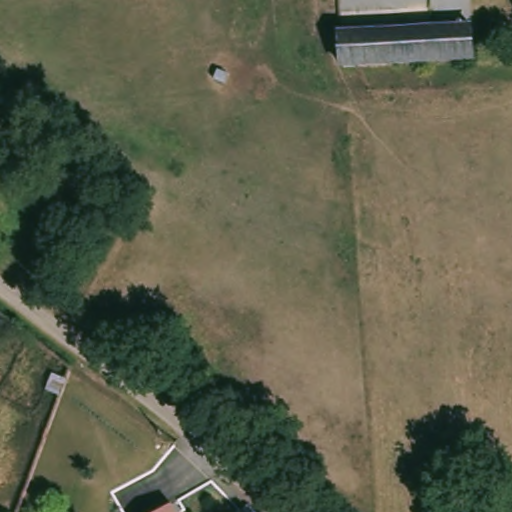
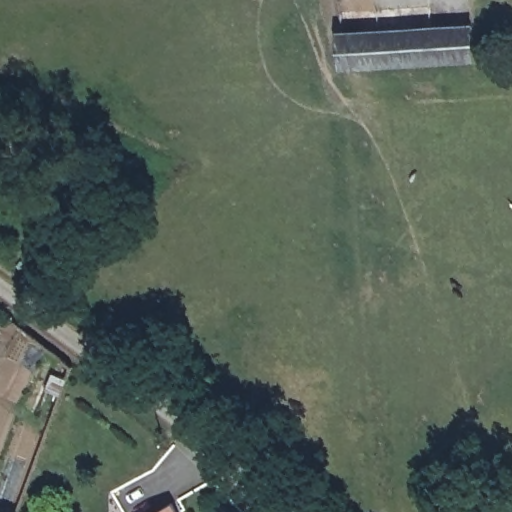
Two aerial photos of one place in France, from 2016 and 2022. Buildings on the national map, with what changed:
unchanged [(469,27),(471,61),(423,64),(347,69),(344,35),(469,27)]
unchanged [(163,508),(165,512),(157,512),(163,508)]

